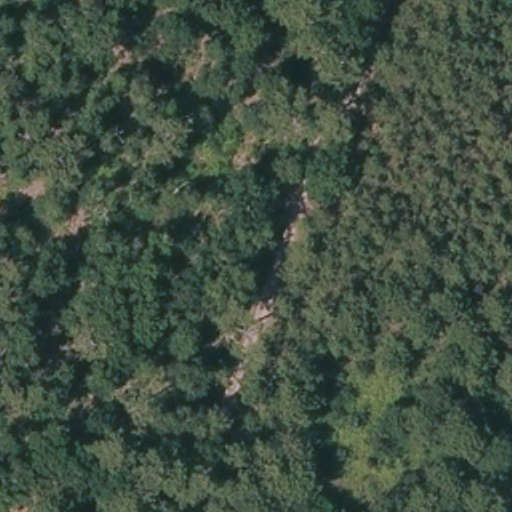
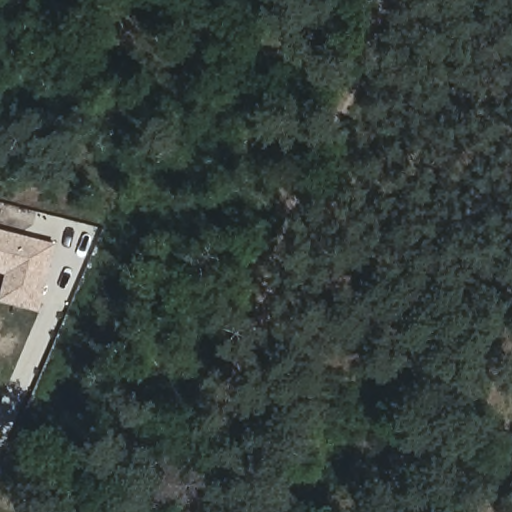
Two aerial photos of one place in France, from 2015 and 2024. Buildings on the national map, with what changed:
new [(59,245),(43,306),(23,301),(29,275),(0,268),(0,229),(59,245)]
new [(29,275),(23,301),(9,298),(16,271),(29,275)]

